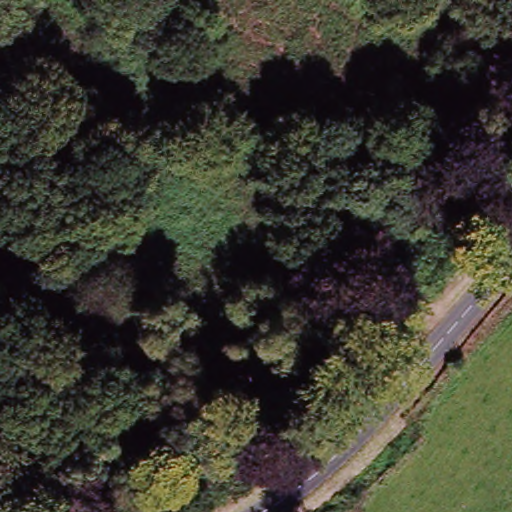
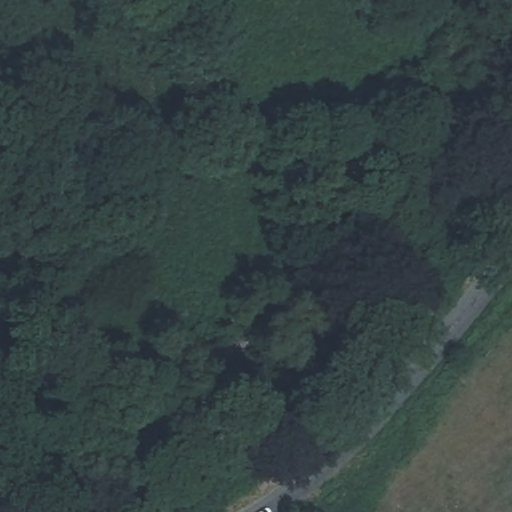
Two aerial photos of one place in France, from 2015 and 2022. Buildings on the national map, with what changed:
[]

